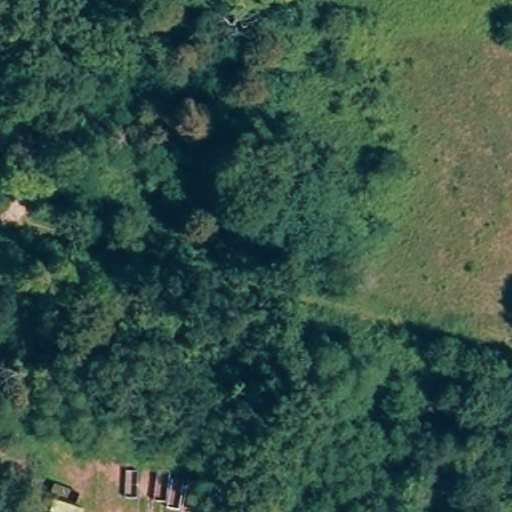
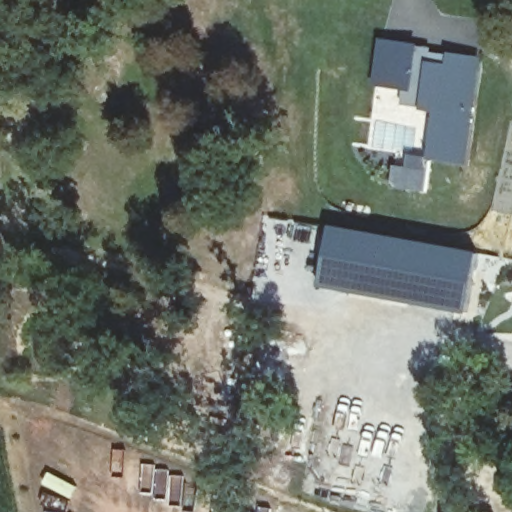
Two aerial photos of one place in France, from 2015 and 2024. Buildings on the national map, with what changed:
new [(467,167),(429,161),(437,113),(424,111),(403,108),(377,104),(379,88),(374,86),(382,39),(421,44),(421,46),(434,49),(434,54),(452,54),(484,58),(467,167)]
new [(479,252),(469,314),(321,288),(330,225),(479,252)]

